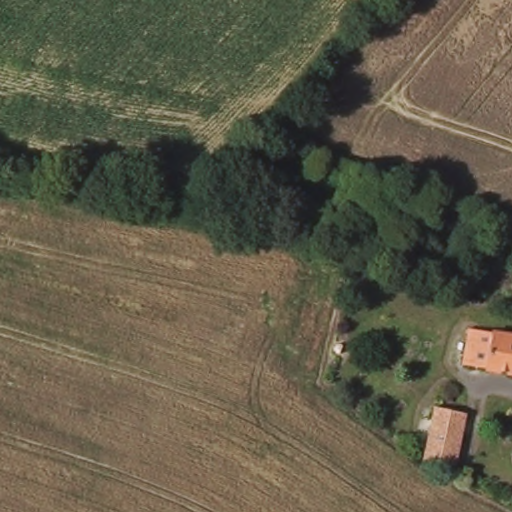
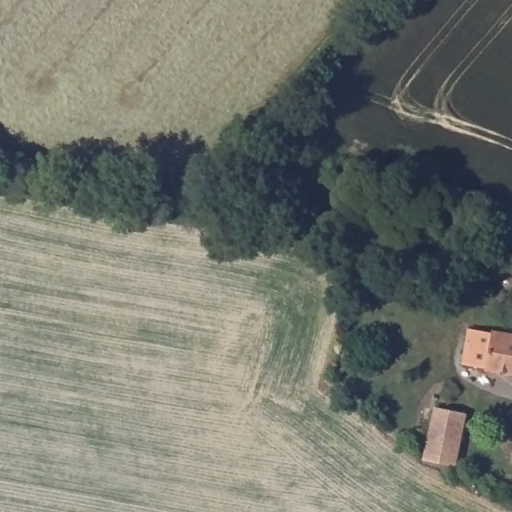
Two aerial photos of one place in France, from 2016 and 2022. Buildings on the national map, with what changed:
unchanged [(465,329),(512,338),(512,374),(458,364),(465,329)]
unchanged [(435,407),(467,414),(456,466),(424,459),(435,407)]

